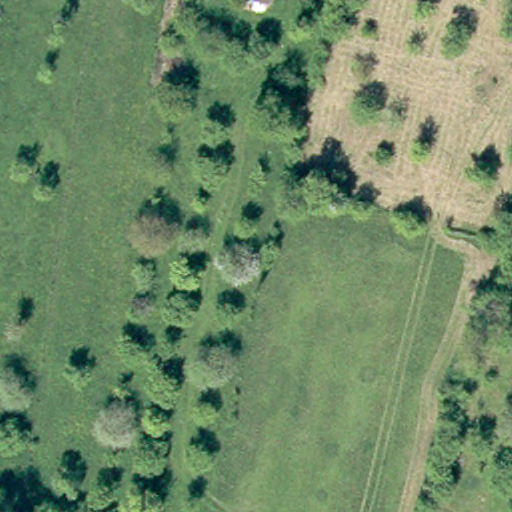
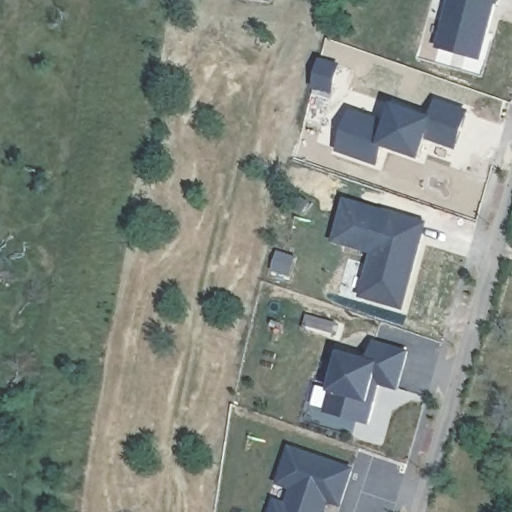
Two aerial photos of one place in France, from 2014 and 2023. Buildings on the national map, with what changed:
new [(499,5),(497,5),(481,60),(435,47),(447,0),(500,0),(499,5)]
new [(458,151),(429,141),(422,161),(386,148),(379,167),(336,152),(351,108),(388,122),(395,104),(430,116),(436,98),(472,111),(458,151)]
new [(404,311),(360,298),(385,209),(429,221),(404,311)]
new [(276,253),(294,259),(288,277),(270,271),(276,253)]
new [(410,351),(399,391),(380,386),(369,427),(324,412),(330,392),(341,352),(370,359),(374,341),(410,351)]
new [(277,486),(290,446),(356,469),(343,507),(330,502),(327,512),(271,512),(276,499),(286,502),(291,490),(277,486)]

